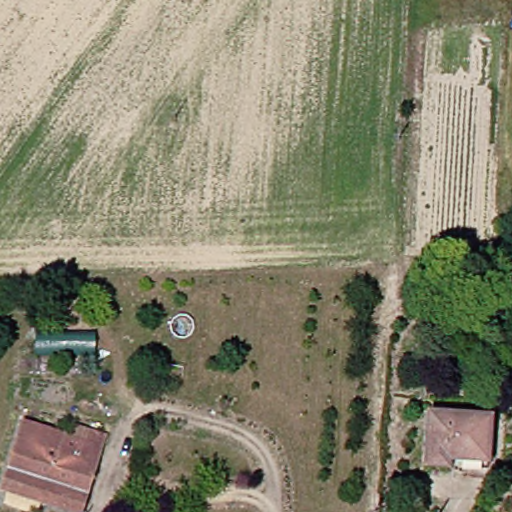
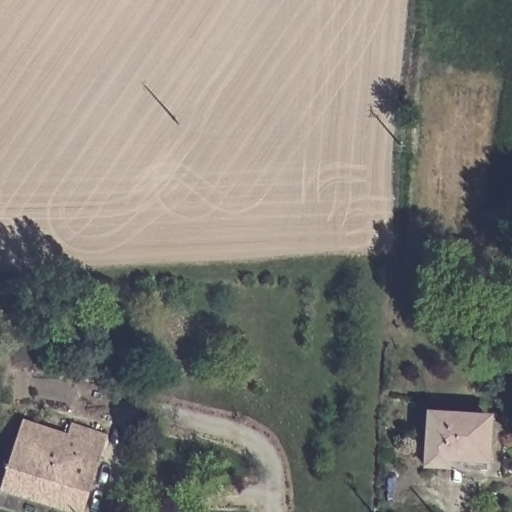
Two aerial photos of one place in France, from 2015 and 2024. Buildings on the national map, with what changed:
unchanged [(87,354),(26,353),(26,329),(87,329),(87,354)]
unchanged [(439,464),(418,462),(422,407),(483,413),(479,455),(479,467),(439,464)]
unchanged [(0,494),(0,484),(21,422),(53,432),(56,420),(91,431),(70,495),(64,512),(56,512),(48,510),(0,494)]

